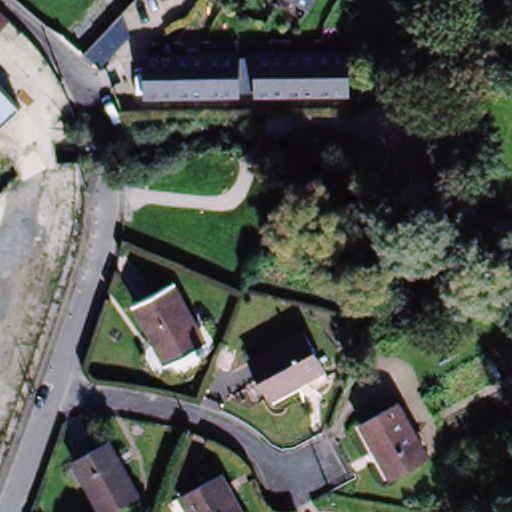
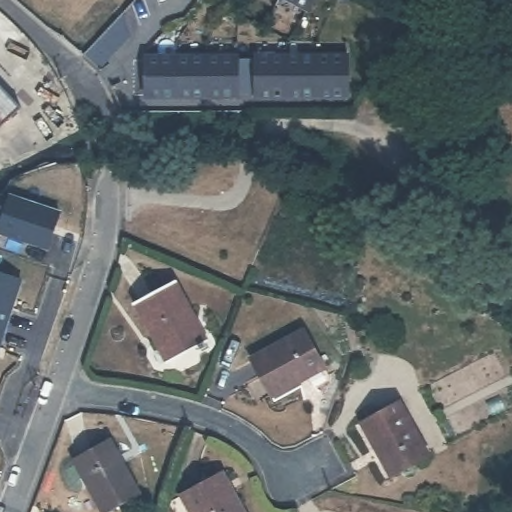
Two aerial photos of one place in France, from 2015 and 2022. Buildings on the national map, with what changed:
unchanged [(324,14),(296,0),(331,0),(324,14)]
unchanged [(23,28),(28,32),(23,40),(0,21),(0,8),(10,17),(23,28)]
unchanged [(79,53),(89,43),(118,15),(126,35),(93,67),(82,57),(78,54),(79,53)]
unchanged [(353,93),(263,91),(264,52),(353,54),(353,93)]
unchanged [(236,95),(147,93),(148,55),(237,57),(236,95)]
unchanged [(0,128),(0,83),(22,106),(0,128)]
demolished [(0,164),(0,137),(13,152),(0,164)]
new [(55,207),(44,243),(0,229),(0,212),(6,191),(55,207)]
new [(4,322),(0,321),(0,268),(19,274),(4,322)]
unchanged [(180,283),(211,344),(172,365),(141,303),(180,283)]
new [(0,334),(0,321),(4,322),(0,334)]
unchanged [(307,329),(329,366),(276,399),(254,362),(307,329)]
unchanged [(400,403),(429,457),(392,477),(363,423),(400,403)]
unchanged [(138,493),(105,512),(100,512),(71,460),(109,439),(138,493)]
unchanged [(248,512),(197,512),(186,492),(225,470),(248,512)]

